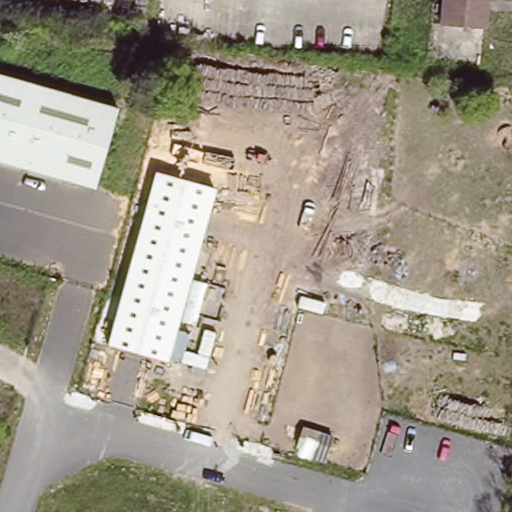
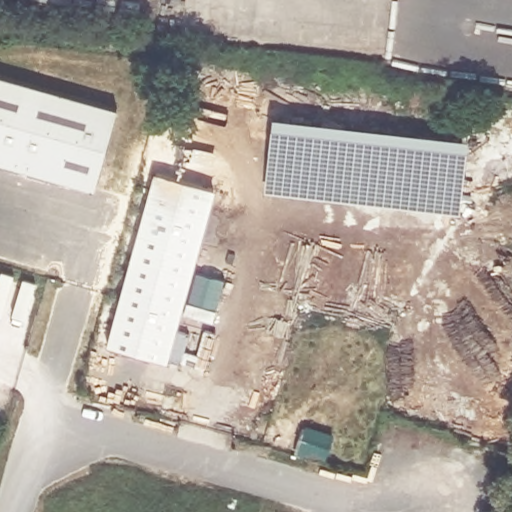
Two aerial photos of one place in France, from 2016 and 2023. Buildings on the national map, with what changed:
unchanged [(442,25),(444,0),(487,0),(485,29),(474,29),(442,25)]
unchanged [(95,189),(0,162),(0,73),(120,106),(95,189)]
new [(285,121),(472,140),(466,200),(278,181),(285,121)]
unchanged [(155,174),(218,190),(170,361),(109,343),(155,174)]

